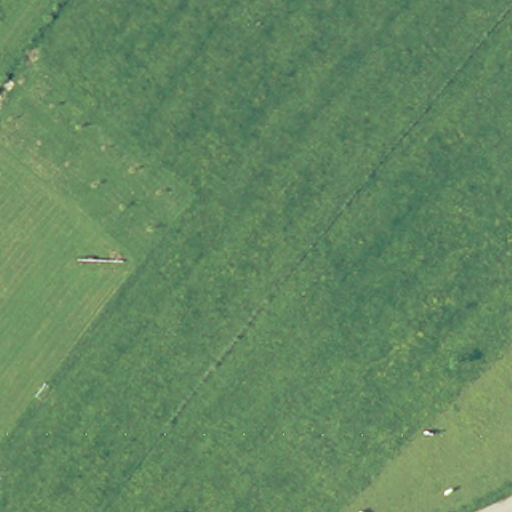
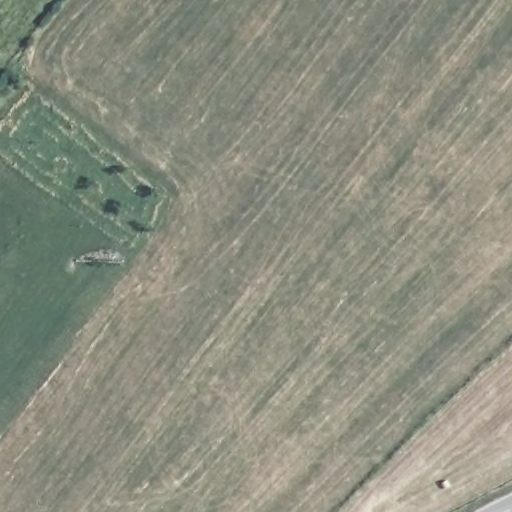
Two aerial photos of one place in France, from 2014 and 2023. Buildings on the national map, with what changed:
[]

